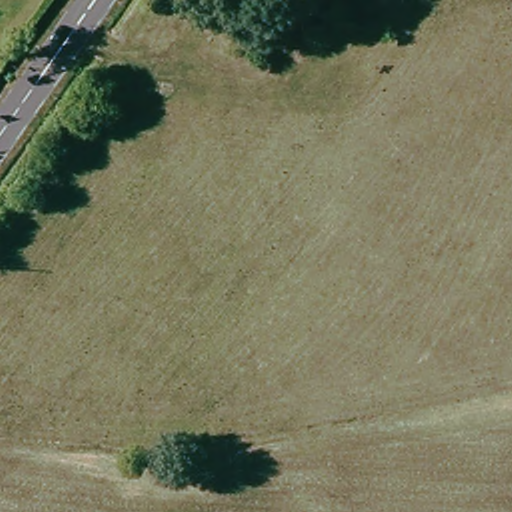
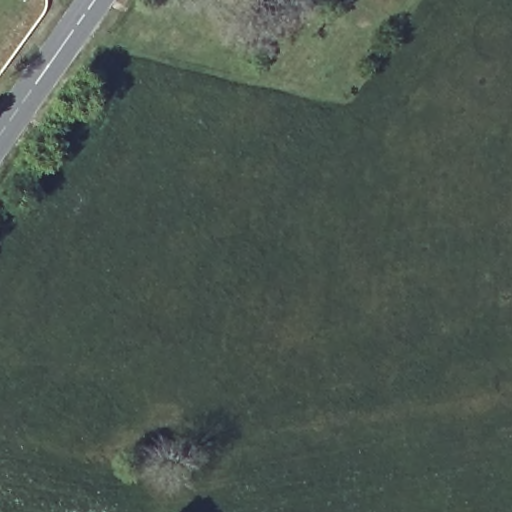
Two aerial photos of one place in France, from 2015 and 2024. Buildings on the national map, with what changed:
unchanged [(58,0),(55,4),(49,0),(58,0)]

